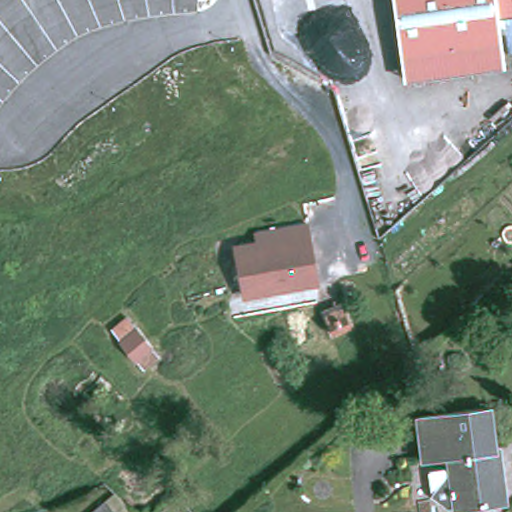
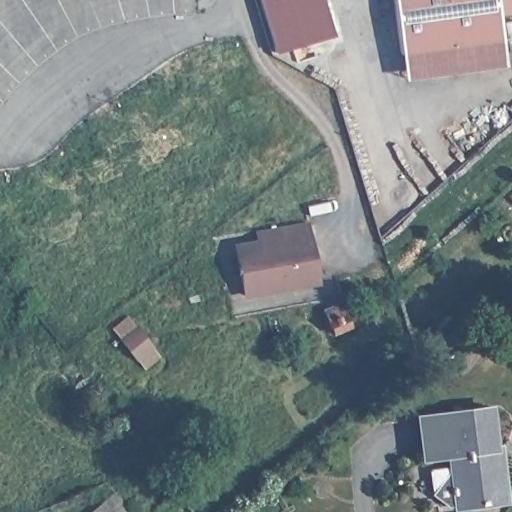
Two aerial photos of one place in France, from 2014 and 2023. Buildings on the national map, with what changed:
new [(275,52),(260,0),(322,0),(332,35),(275,52)]
unchanged [(512,0),(512,46),(506,46),(509,66),(403,79),(393,0),(512,0)]
unchanged [(256,238),(253,233),(307,222),(320,283),(241,298),(232,244),(256,238)]
new [(146,368),(137,358),(137,359),(121,340),(113,329),(128,317),(137,327),(136,327),(152,346),(160,356),(146,368)]
unchanged [(494,407),(501,459),(506,458),(511,501),(462,507),(455,455),(432,458),(425,415),(494,407)]
unchanged [(116,512),(91,512),(106,499),(116,512)]

